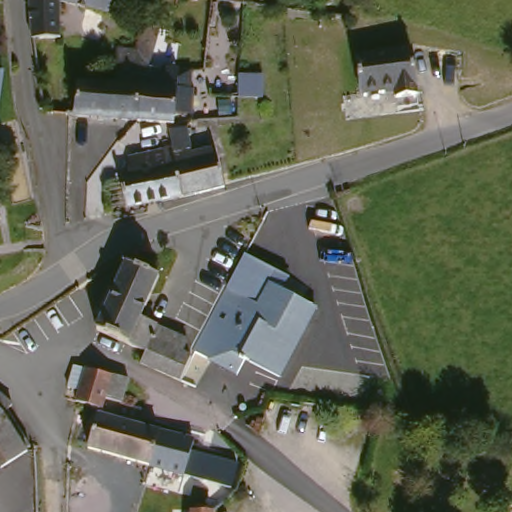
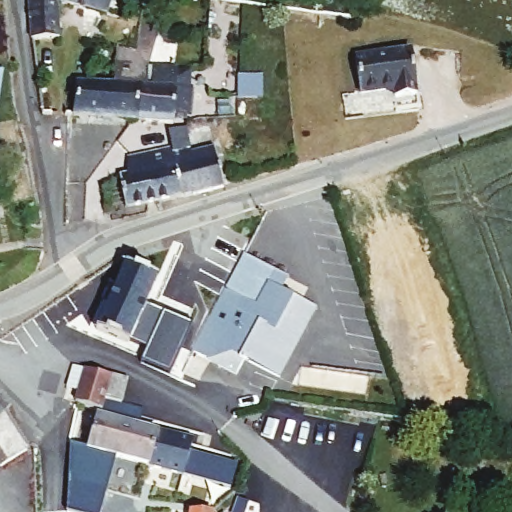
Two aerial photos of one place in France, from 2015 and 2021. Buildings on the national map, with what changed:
unchanged [(110,18),(61,4),(61,43),(32,41),(29,0),(115,0),(110,18)]
unchanged [(114,117),(68,113),(73,78),(107,82),(112,82),(115,49),(143,51),(141,65),(177,67),(170,121),(136,119),(131,118),(114,117)]
unchanged [(409,62),(407,99),(384,98),(384,89),(353,87),(354,59),(409,62)]
unchanged [(106,190),(120,190),(119,181),(130,180),(128,159),(138,157),(172,150),(170,137),(185,133),(190,150),(193,156),(200,155),(214,153),(217,165),(223,189),(214,192),(207,193),(140,210),(129,212),(123,214),(107,217),(106,190)]
unchanged [(247,254),(292,280),(287,291),(267,281),(254,303),(228,290),(247,254)]
unchanged [(119,264),(153,277),(141,306),(144,308),(139,322),(127,350),(99,337),(94,336),(89,332),(119,264)]
unchanged [(229,291),(254,303),(267,281),(313,306),(277,378),(239,360),(232,375),(197,357),(193,355),(228,290),(229,291)]
unchanged [(139,322),(184,342),(180,356),(189,359),(178,380),(176,383),(154,374),(134,366),(140,354),(134,352),(127,350),(139,322)]
unchanged [(88,374),(104,379),(122,379),(134,388),(129,410),(146,415),(143,431),(195,445),(193,460),(239,472),(234,493),(84,452),(94,412),(81,409),(71,407),(71,404),(71,403),(76,383),(79,371),(88,374)]
unchanged [(5,404),(0,413),(0,399),(5,403),(5,404)]
unchanged [(0,465),(0,416),(24,451),(0,465)]
new [(114,460),(100,512),(75,512),(68,510),(71,444),(85,448),(84,452),(114,460)]
unchanged [(199,512),(189,512),(189,511),(199,512)]

